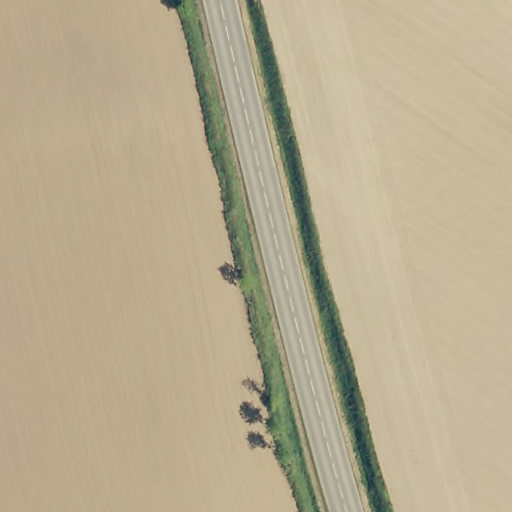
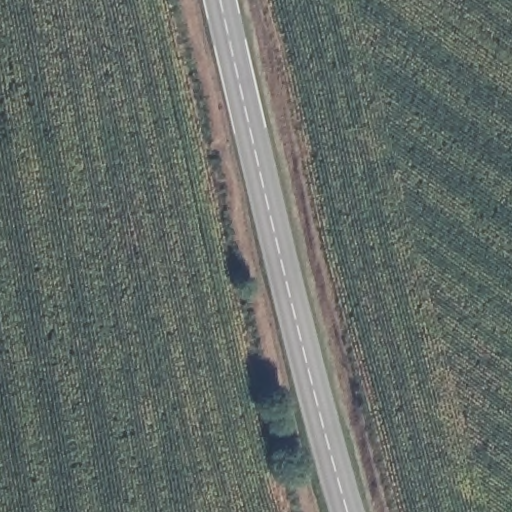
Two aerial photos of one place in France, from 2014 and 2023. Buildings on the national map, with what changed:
[]

